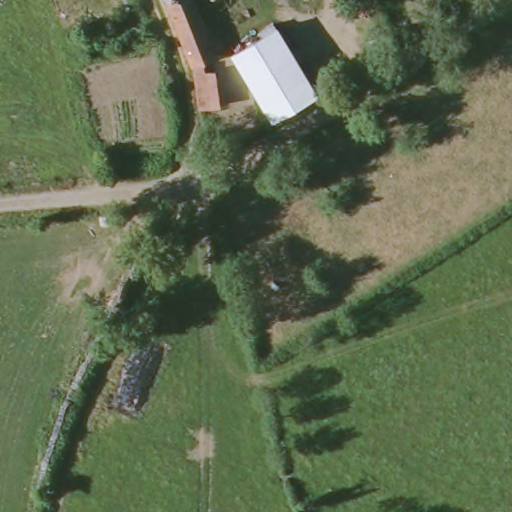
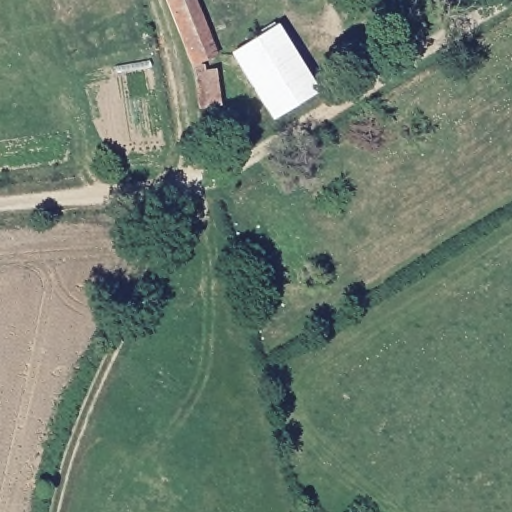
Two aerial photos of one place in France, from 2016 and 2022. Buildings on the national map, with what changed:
unchanged [(212,50),(200,56),(204,71),(211,71),(212,102),(197,103),(190,73),(170,17),(164,0),(195,0),(212,50)]
unchanged [(315,95),(269,122),(230,57),(274,31),(315,95)]

